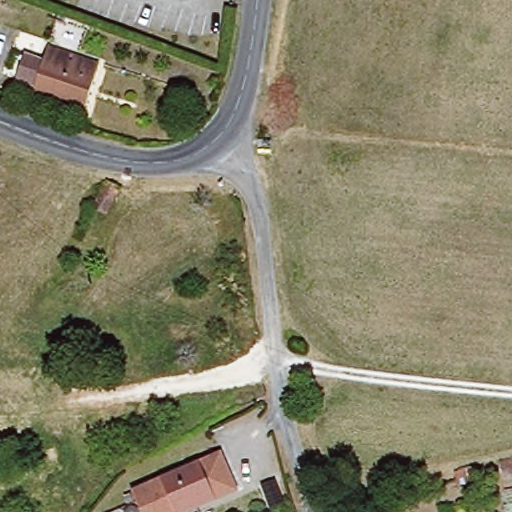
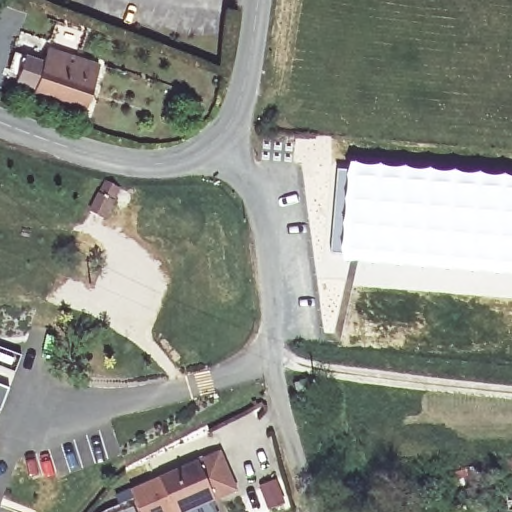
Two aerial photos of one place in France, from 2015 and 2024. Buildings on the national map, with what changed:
unchanged [(88,116),(38,98),(38,94),(21,88),(29,63),(48,69),(52,55),(103,73),(88,116)]
new [(331,252),(337,167),(348,168),(349,161),(441,170),(512,175),(512,276),(430,268),(377,266),(356,263),(340,262),(341,253),(331,252)]
unchanged [(118,185),(113,199),(105,213),(93,206),(105,179),(118,185)]
new [(356,263),(377,266),(430,268),(512,276),(512,298),(411,291),(353,285),(356,263)]
demolished [(72,451),(50,454),(46,422),(68,419),(72,451)]
unchanged [(221,449),(239,487),(186,512),(144,512),(134,491),(221,449)]
demolished [(51,499),(45,463),(73,458),(79,495),(51,499)]
demolished [(29,495),(0,504),(0,489),(25,482),(29,495)]
unchanged [(511,505),(511,488),(512,487),(512,505),(511,505)]

